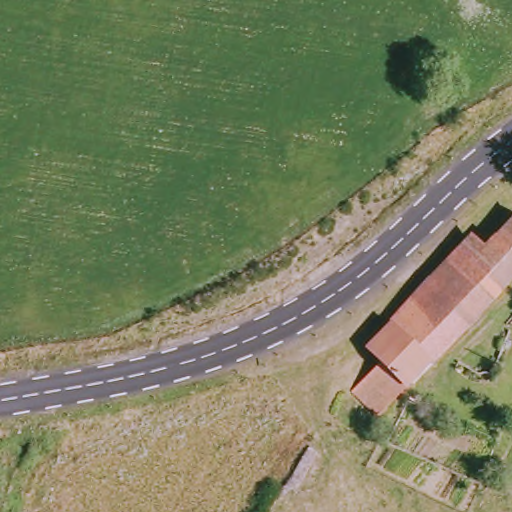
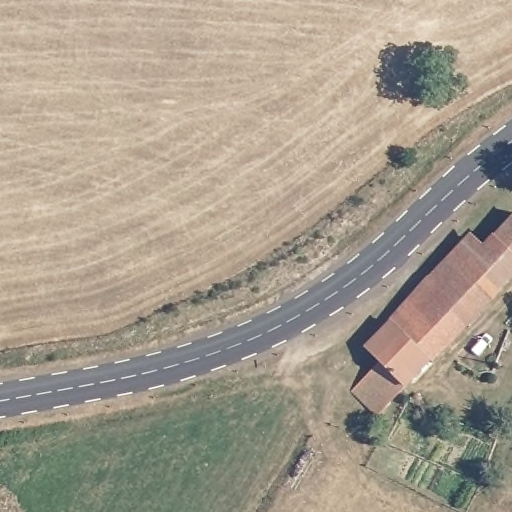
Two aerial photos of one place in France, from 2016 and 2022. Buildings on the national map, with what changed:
unchanged [(472,241),(487,256),(512,229),(512,284),(475,322),(432,282),(472,241)]
unchanged [(381,418),(357,394),(382,366),(370,349),(432,282),(475,322),(381,418)]

